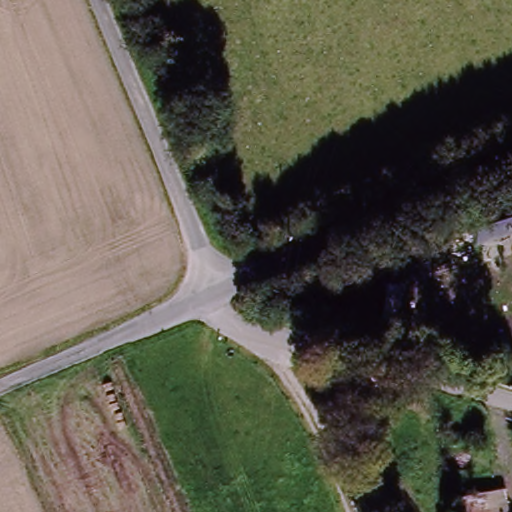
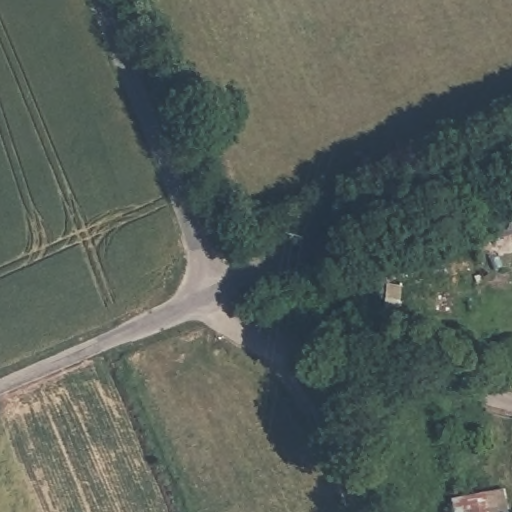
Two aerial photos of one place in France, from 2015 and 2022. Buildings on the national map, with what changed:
unchanged [(512,197),(512,207),(508,199),(512,197)]
unchanged [(478,230),(512,212),(512,242),(490,253),(478,230)]
unchanged [(425,244),(416,247),(410,235),(418,231),(425,244)]
unchanged [(507,512),(461,512),(458,499),(505,490),(507,512)]

